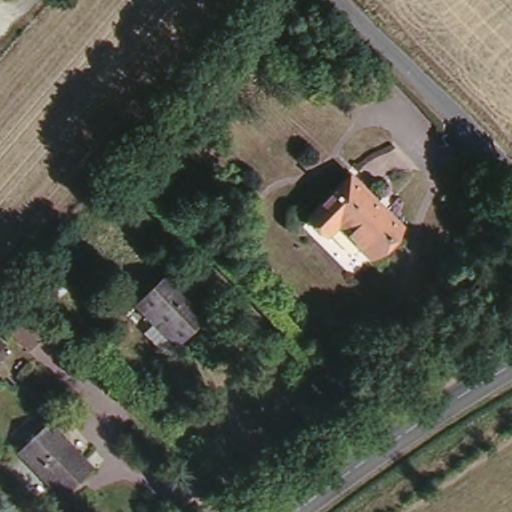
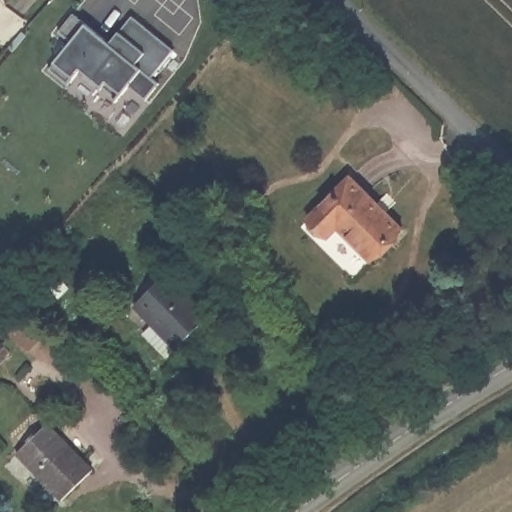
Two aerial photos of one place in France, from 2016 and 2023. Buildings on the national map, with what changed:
new [(71,41),(59,31),(74,12),(110,42),(132,15),(175,49),(152,77),(160,82),(146,99),(129,86),(117,99),(80,68),(68,84),(49,68),(71,41)]
unchanged [(338,222),(327,233),(308,214),(350,172),(401,225),(370,255),(338,222)]
unchanged [(166,274),(209,317),(176,349),(134,306),(166,274)]
unchanged [(4,301),(39,341),(27,352),(6,328),(0,333),(0,305),(4,301)]
unchanged [(48,419),(93,466),(61,495),(16,448),(48,419)]

